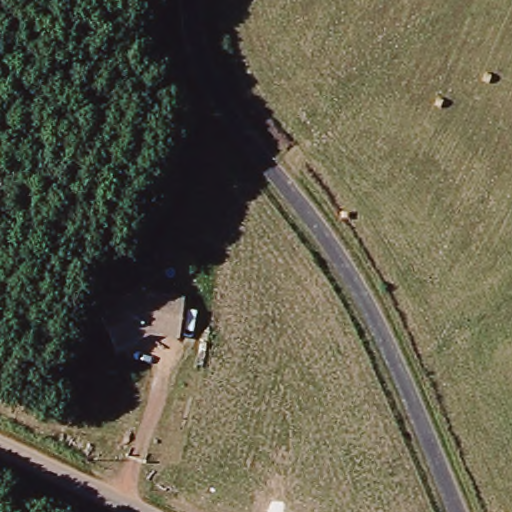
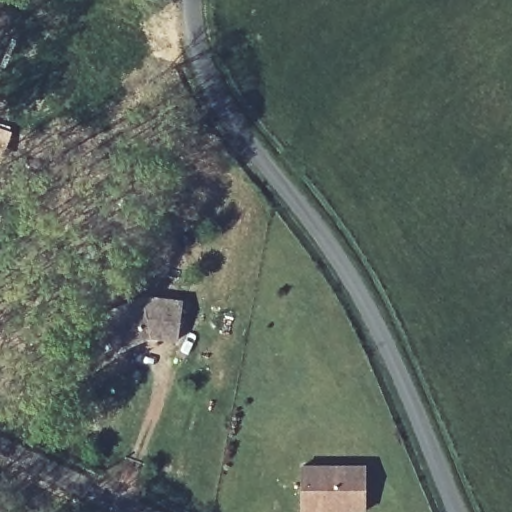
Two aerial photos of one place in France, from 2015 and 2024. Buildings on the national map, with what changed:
unchanged [(145,295),(182,301),(179,340),(149,336),(111,353),(97,315),(145,295)]
new [(367,466),(366,512),(299,512),(299,465),(367,466)]

